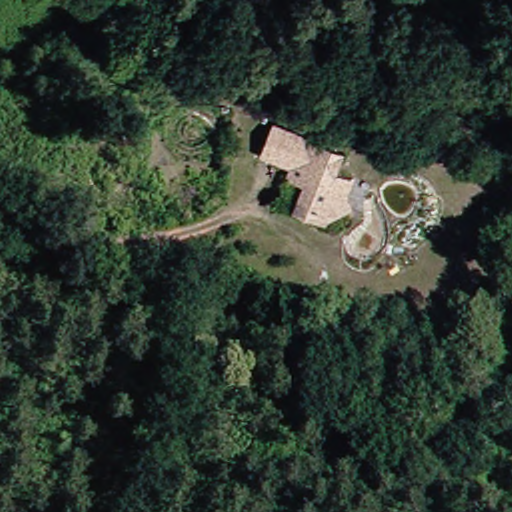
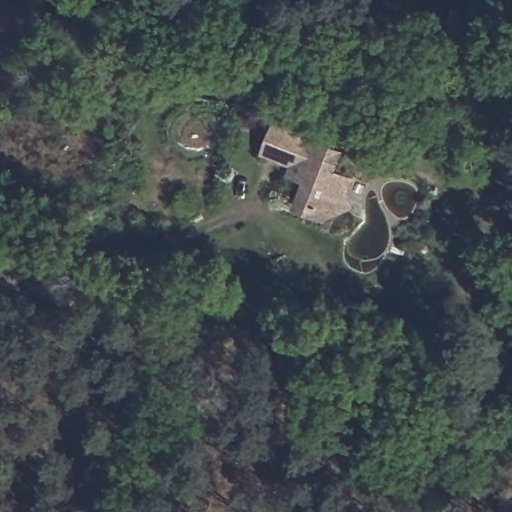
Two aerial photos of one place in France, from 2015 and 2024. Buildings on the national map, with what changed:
unchanged [(333,146),(328,161),(348,174),(342,196),(344,211),(326,220),(286,206),(295,177),(259,154),(268,123),(333,146)]

